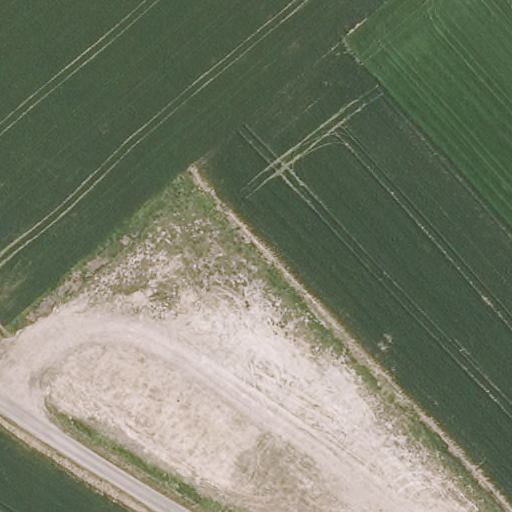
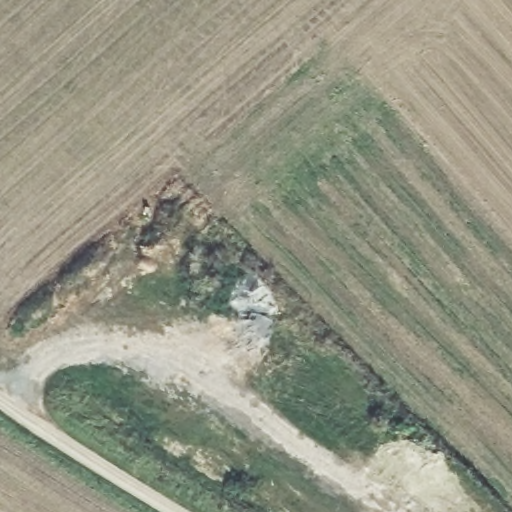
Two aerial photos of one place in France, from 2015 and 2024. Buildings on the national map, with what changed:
[]

